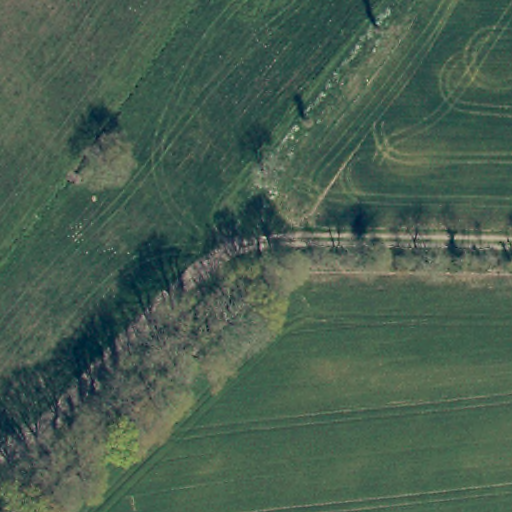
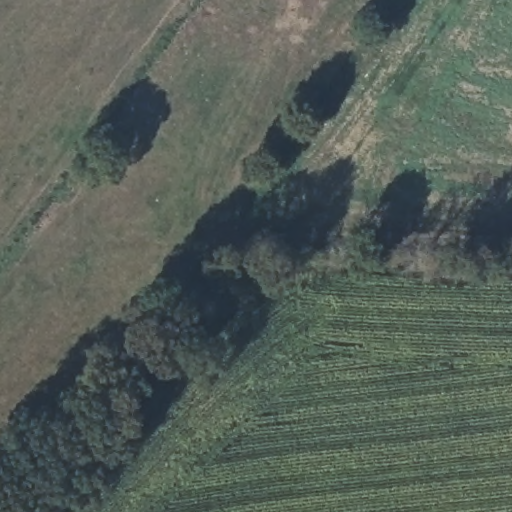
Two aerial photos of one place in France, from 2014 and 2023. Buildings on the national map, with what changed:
[]

